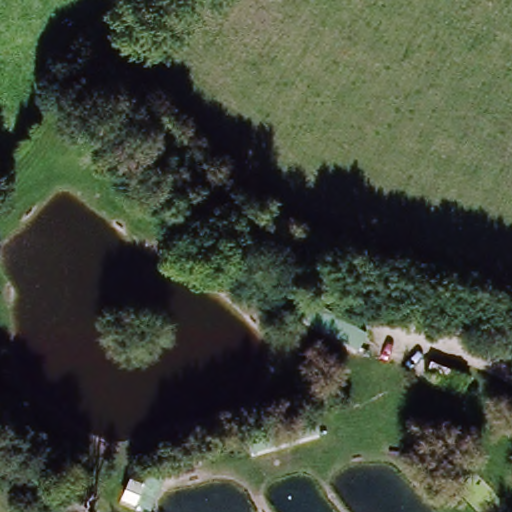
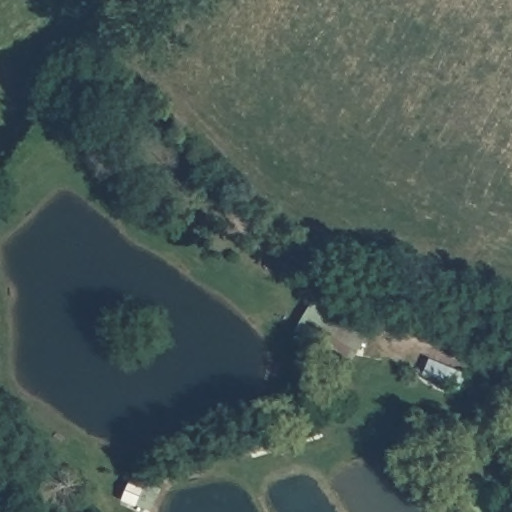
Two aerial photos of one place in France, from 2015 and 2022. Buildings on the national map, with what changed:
unchanged [(315,296),(367,329),(355,348),(300,317),(315,296)]
unchanged [(248,433),(311,412),(318,435),(255,456),(248,433)]
unchanged [(123,498),(126,484),(137,488),(145,466),(166,472),(155,509),(123,498)]

